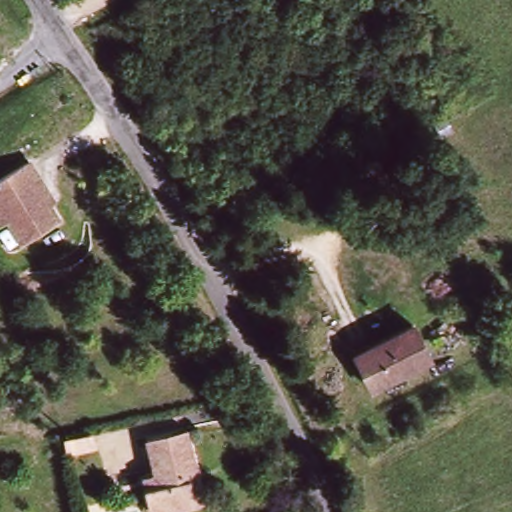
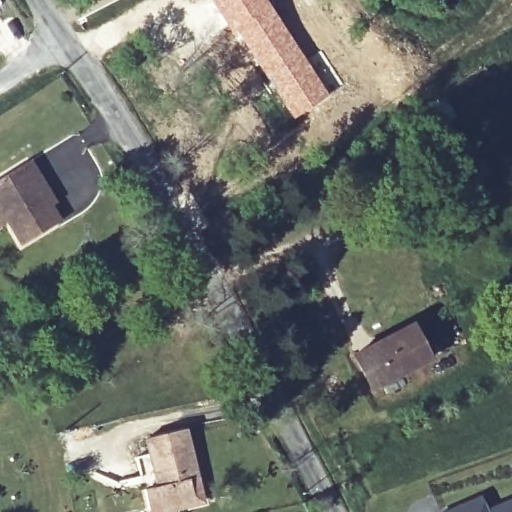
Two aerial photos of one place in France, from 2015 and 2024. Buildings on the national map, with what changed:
new [(330,94),(293,119),(250,54),(210,0),(267,0),(330,94)]
unchanged [(379,85),(357,99),(349,86),(371,72),(379,85)]
unchanged [(29,162),(38,177),(54,202),(48,205),(58,222),(20,245),(7,222),(0,226),(0,178),(29,162)]
unchanged [(431,362),(375,392),(357,358),(413,328),(431,362)]
unchanged [(193,477),(198,506),(164,512),(153,512),(149,495),(162,492),(153,446),(196,437),(203,476),(193,477)]
new [(512,499),(512,512),(445,512),(485,495),(491,508),(512,499)]

